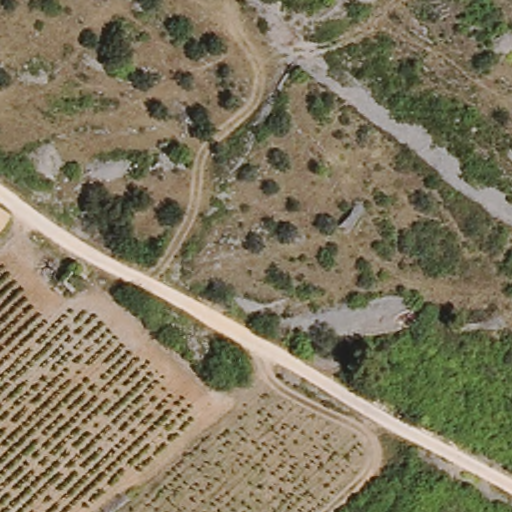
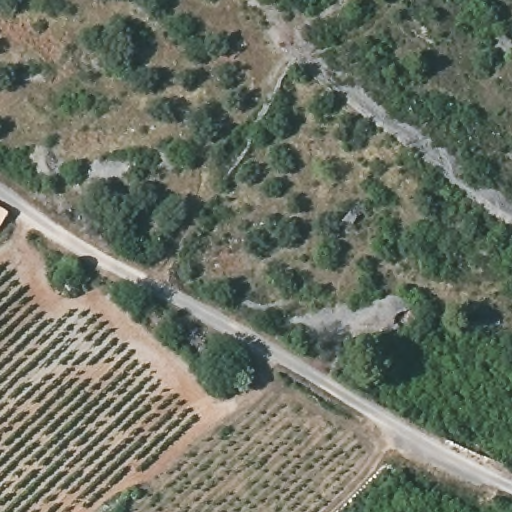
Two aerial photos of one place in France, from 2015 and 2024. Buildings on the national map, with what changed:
unchanged [(1,229),(0,229),(0,209),(8,214),(4,222),(1,229)]
unchanged [(73,295),(61,284),(74,271),(88,281),(73,295)]
unchanged [(401,333),(396,324),(412,316),(417,325),(401,333)]
unchanged [(368,360),(347,362),(341,339),(361,335),(368,360)]

